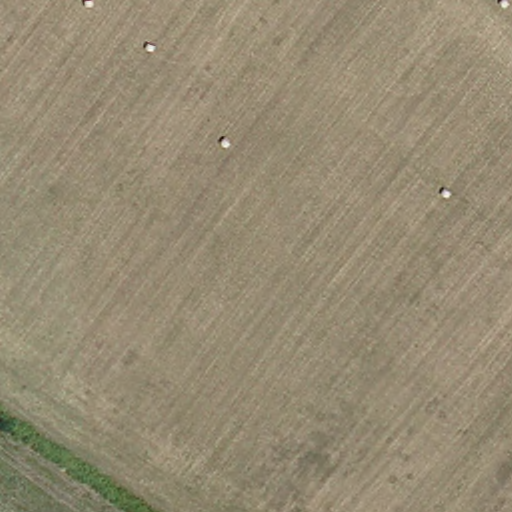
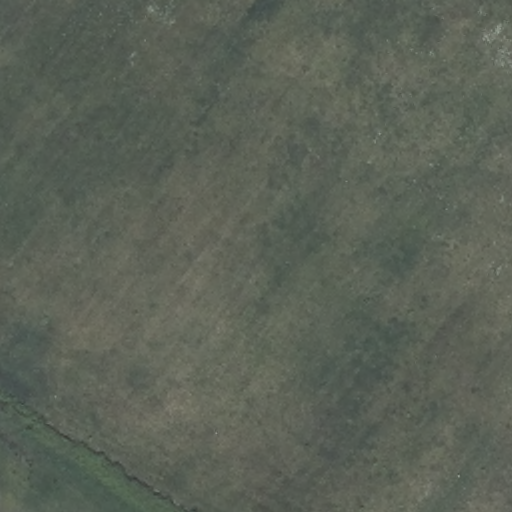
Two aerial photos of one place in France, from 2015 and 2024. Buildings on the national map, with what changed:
[]

